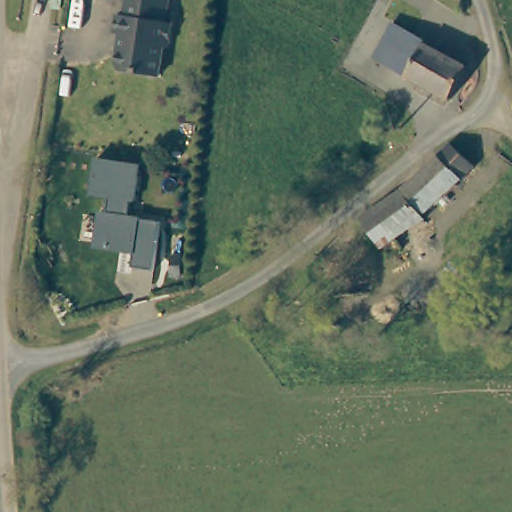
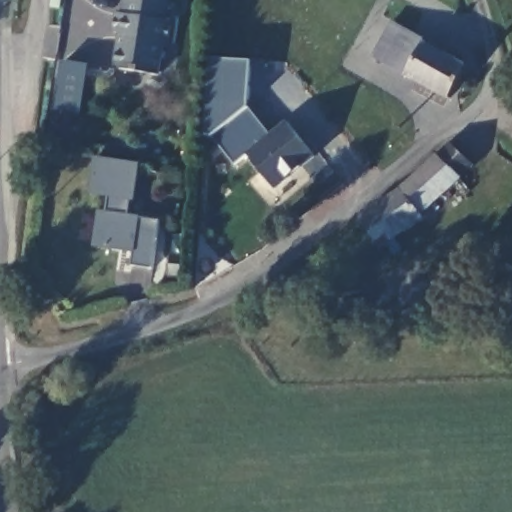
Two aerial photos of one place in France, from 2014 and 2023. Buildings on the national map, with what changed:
unchanged [(119,67),(123,31),(117,30),(118,11),(126,12),(128,0),(171,0),(168,20),(173,20),(171,41),(165,45),(162,74),(119,67)]
unchanged [(420,42),(402,75),(369,57),(390,20),(423,37),(420,42)]
unchanged [(448,90),(444,97),(402,75),(420,42),(461,64),(454,79),(463,84),(457,95),(448,90)]
new [(248,107),(212,136),(200,133),(207,59),(251,61),(248,107)]
new [(83,116),(54,110),(63,60),(91,65),(83,116)]
new [(270,134),(287,120),(316,157),(275,190),(248,156),(235,166),(212,136),(248,107),(270,134)]
unchanged [(384,254),(378,245),(353,212),(394,185),(445,139),(448,140),(471,161),(417,210),(420,214),(394,233),(400,241),(384,254)]
unchanged [(139,201),(132,201),(129,215),(161,220),(155,269),(134,267),(134,253),(96,246),(102,211),(108,211),(110,197),(91,195),(97,159),(144,165),(139,201)]

